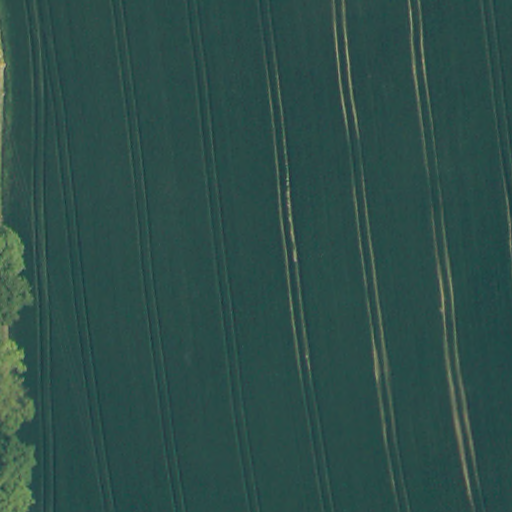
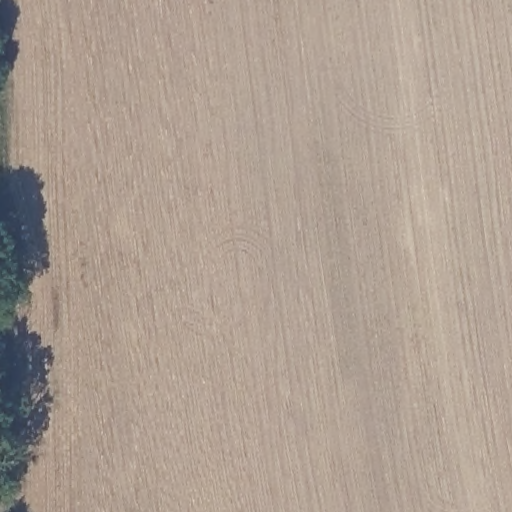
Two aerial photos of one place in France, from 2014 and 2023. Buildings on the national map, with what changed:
[]

